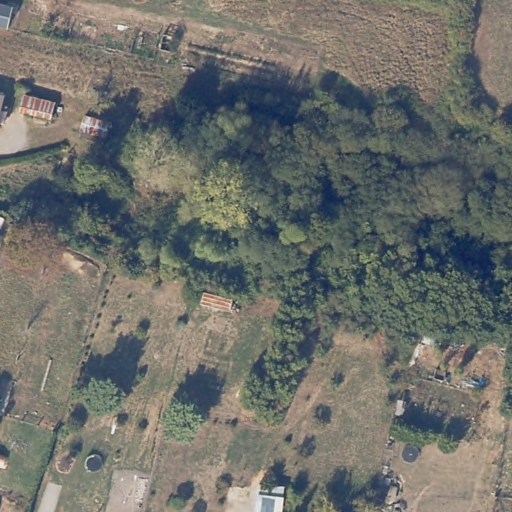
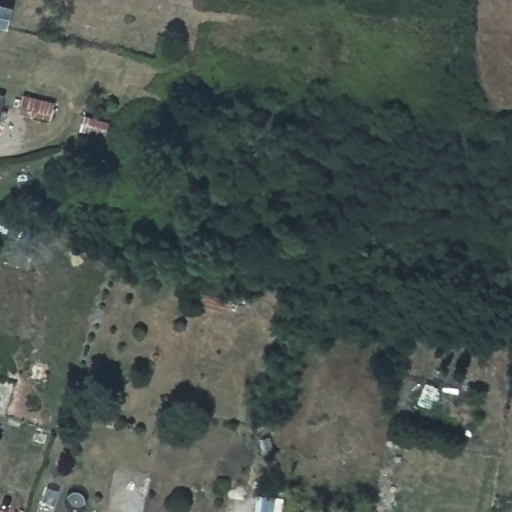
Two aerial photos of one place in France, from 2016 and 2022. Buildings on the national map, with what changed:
unchanged [(54,100),(50,116),(23,109),(26,93),(54,100)]
unchanged [(0,97),(0,95),(1,96),(0,97)]
unchanged [(286,99),(284,109),(267,106),(270,95),(286,99)]
unchanged [(0,119),(0,110),(3,111),(0,119)]
unchanged [(0,395),(0,373),(6,375),(0,395)]

